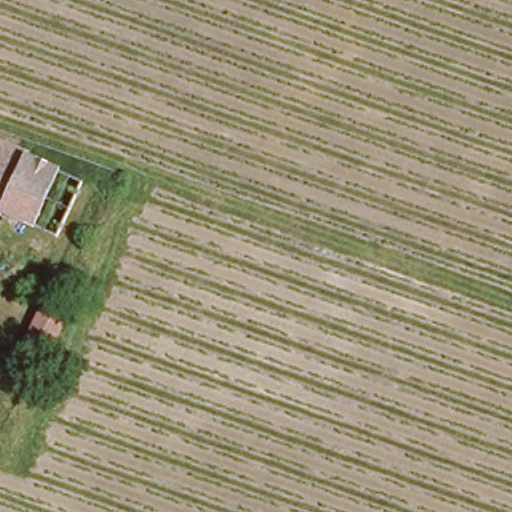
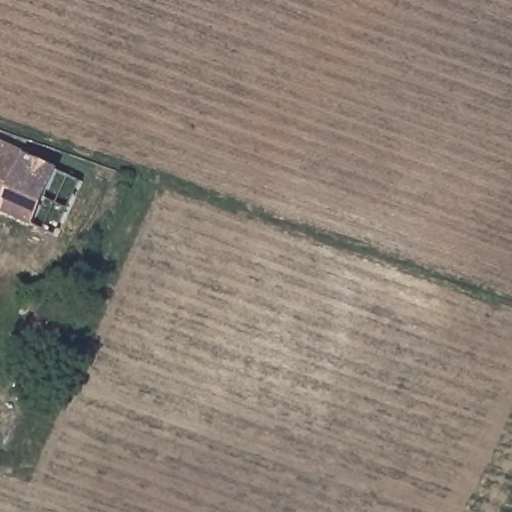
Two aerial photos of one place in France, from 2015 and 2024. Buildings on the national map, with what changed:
unchanged [(77,185),(51,239),(0,214),(0,146),(1,147),(77,185)]
unchanged [(47,349),(28,337),(53,295),(72,306),(47,349)]

